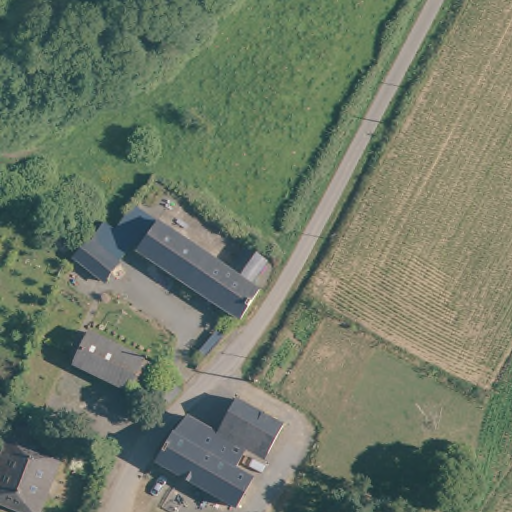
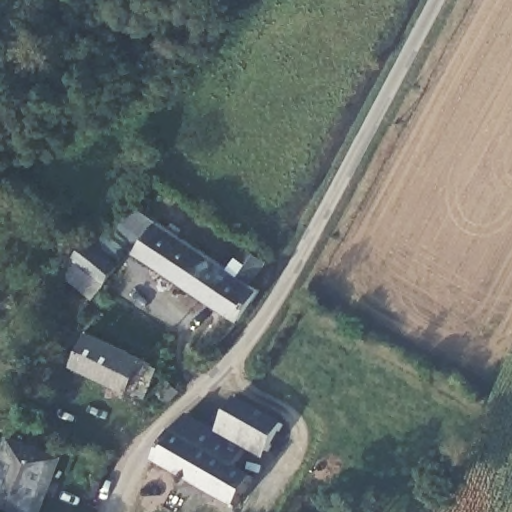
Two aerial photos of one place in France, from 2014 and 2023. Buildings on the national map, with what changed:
unchanged [(110,283),(82,266),(100,233),(110,239),(116,242),(132,214),(146,222),(130,250),(110,283)]
unchanged [(244,246),(244,245),(263,256),(252,275),(250,280),(259,285),(260,285),(256,292),(242,316),(140,255),(130,250),(146,222),(155,226),(230,268),(244,246)]
unchanged [(151,358),(138,388),(71,359),(84,328),(151,358)]
unchanged [(271,416),(276,418),(272,427),(265,447),(215,427),(227,397),(271,416)]
unchanged [(214,429),(245,443),(244,448),(237,463),(256,471),(242,502),(157,465),(160,458),(171,433),(172,433),(182,420),(185,417),(214,429)]
unchanged [(64,456),(44,512),(39,512),(0,498),(0,479),(15,438),(64,456)]

